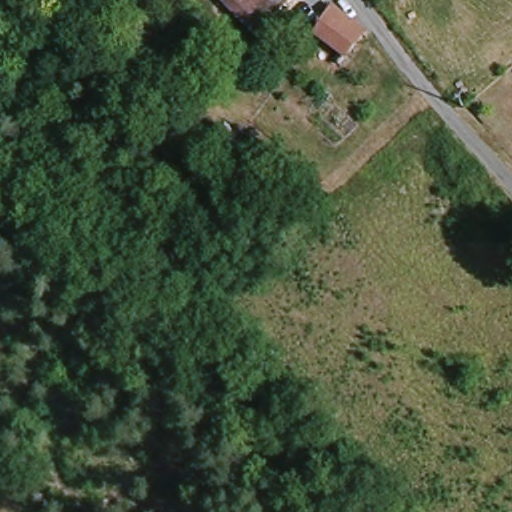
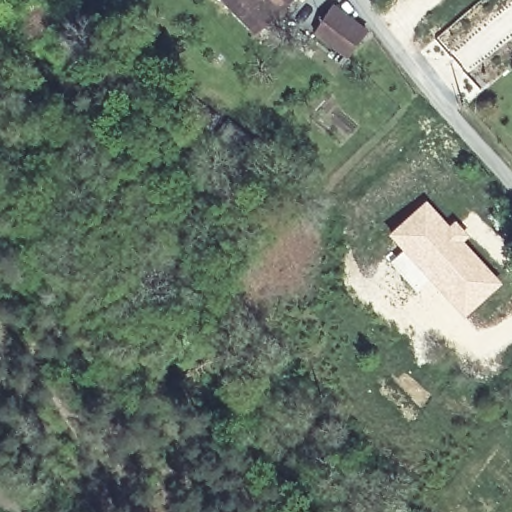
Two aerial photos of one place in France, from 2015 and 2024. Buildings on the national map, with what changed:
unchanged [(291,2),(262,34),(231,0),(290,0),(291,2)]
unchanged [(361,29),(346,55),(317,37),(332,12),(361,29)]
new [(426,201),(450,226),(455,220),(471,237),(465,243),(503,285),(464,321),(406,257),(395,268),(390,262),(401,252),(387,236),(426,201)]

